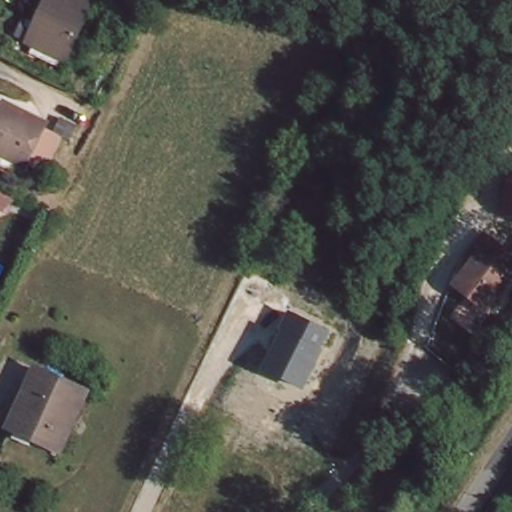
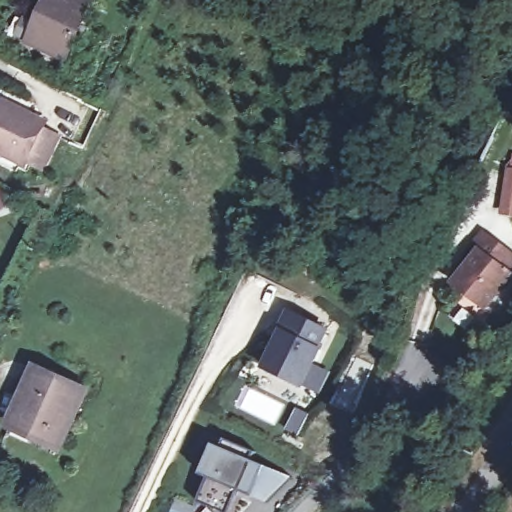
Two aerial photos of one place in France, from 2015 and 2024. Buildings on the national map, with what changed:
unchanged [(23,37),(42,0),(96,0),(67,58),(23,37)]
unchanged [(16,152),(13,157),(0,151),(0,100),(33,116),(31,121),(52,131),(37,162),(16,152)]
new [(512,169),(512,217),(501,215),(508,169),(512,169)]
unchanged [(486,230),(512,254),(512,267),(480,305),(454,280),(479,252),(473,246),(486,230)]
unchanged [(331,330),(304,388),(263,371),(289,310),(331,330)]
unchanged [(16,416),(41,367),(89,392),(60,449),(37,438),(11,426),(16,416)]
new [(238,489),(228,512),(222,512),(199,502),(210,477),(202,474),(214,445),(221,447),(224,438),(258,452),(253,461),(266,466),(292,477),(266,502),(253,495),(238,489)]

